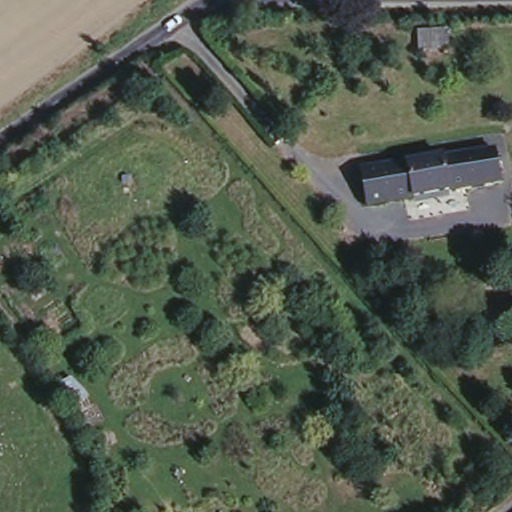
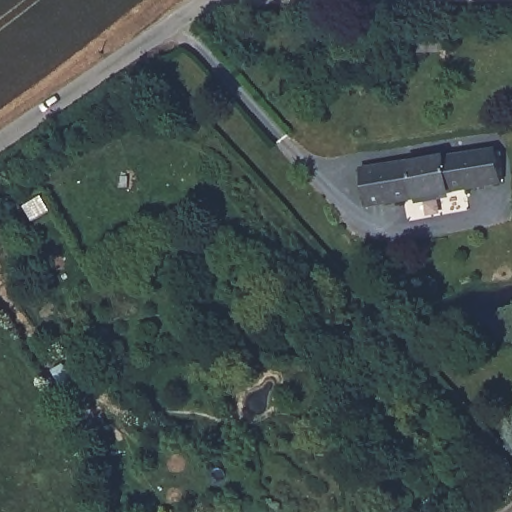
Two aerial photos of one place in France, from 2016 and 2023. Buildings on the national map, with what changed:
unchanged [(495,141),(503,178),(368,202),(362,165),(495,141)]

